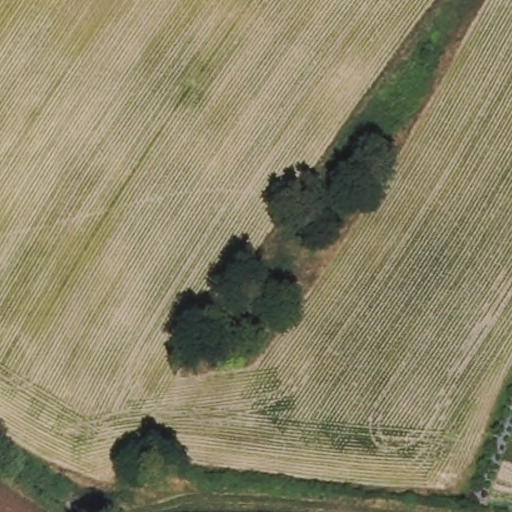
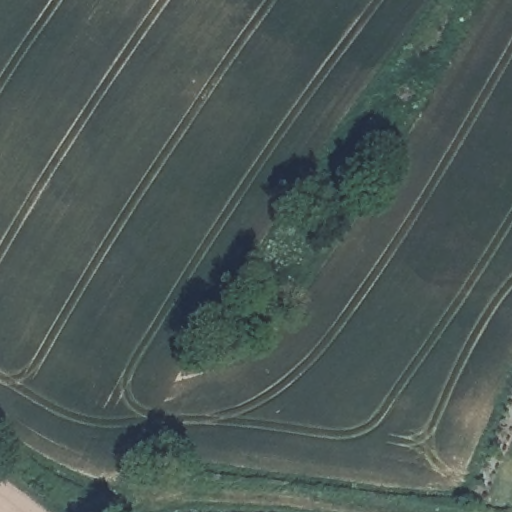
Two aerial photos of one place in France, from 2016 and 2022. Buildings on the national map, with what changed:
[]

